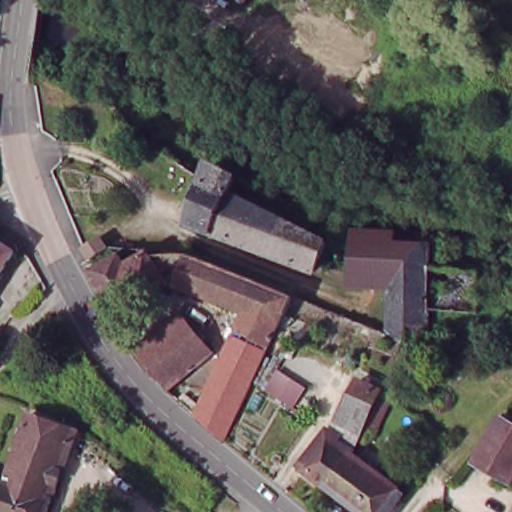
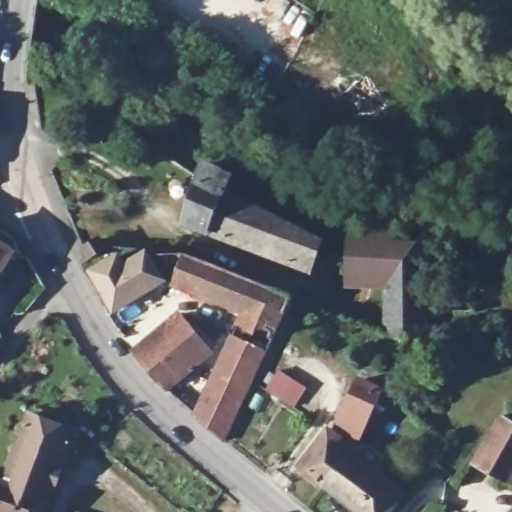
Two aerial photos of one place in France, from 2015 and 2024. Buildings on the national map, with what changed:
unchanged [(318,244),(302,278),(195,229),(214,181),(234,189),(228,202),(318,244)]
unchanged [(389,305),(390,289),(349,287),(350,230),(396,231),(395,247),(446,248),(447,274),(468,273),(469,317),(424,315),(424,306),(389,305)]
unchanged [(14,247),(0,270),(0,239),(14,247)]
unchanged [(85,256),(104,245),(109,254),(88,266),(85,256)]
unchanged [(148,300),(112,322),(89,291),(85,279),(121,255),(136,263),(165,245),(197,256),(169,302),(148,300)]
unchanged [(227,442),(198,415),(244,317),(169,302),(197,256),(293,290),(257,374),(252,385),(227,442)]
unchanged [(424,306),(424,315),(424,335),(390,335),(389,305),(424,306)]
unchanged [(197,345),(168,373),(143,347),(174,322),(197,345)]
unchanged [(311,477),(332,443),(351,384),(377,394),(349,456),(328,490),(311,477)]
unchanged [(512,422),(512,478),(510,482),(474,457),(502,415),(512,422)]
unchanged [(3,486),(30,422),(77,440),(47,512),(0,512),(0,485),(3,486)]
unchanged [(405,491),(390,512),(358,512),(328,490),(349,456),(405,491)]

